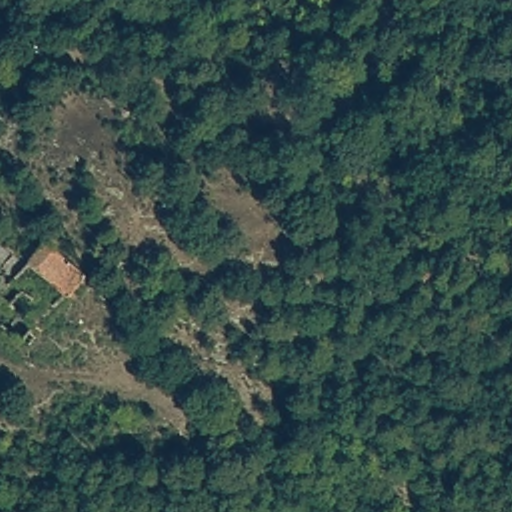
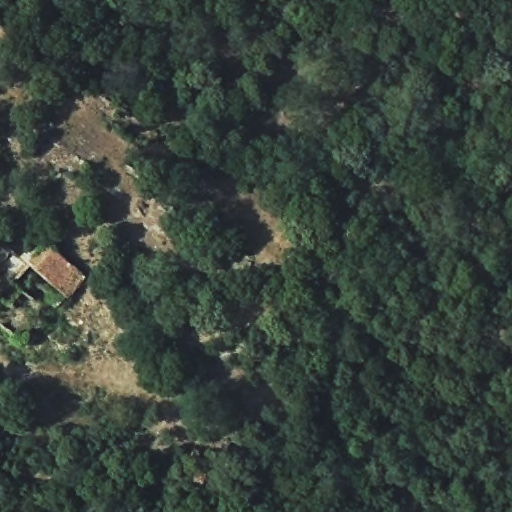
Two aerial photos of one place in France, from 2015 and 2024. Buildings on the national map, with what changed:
unchanged [(43,241),(69,264),(84,278),(66,300),(48,283),(25,263),(43,241)]

